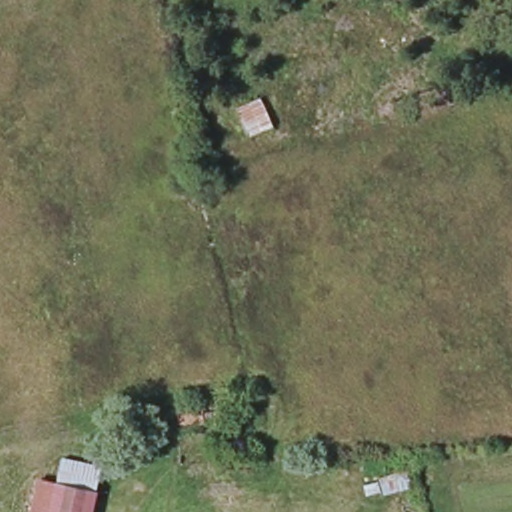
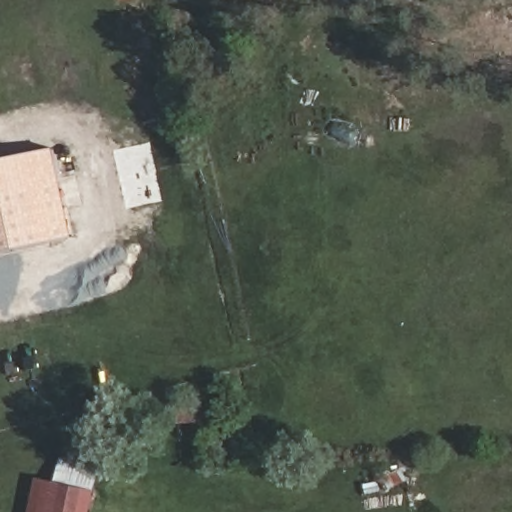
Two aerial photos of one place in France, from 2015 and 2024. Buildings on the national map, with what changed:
demolished [(256,104),(267,132),(244,141),(233,114),(256,104)]
new [(74,237),(0,254),(0,161),(52,149),(74,237)]
unchanged [(80,465),(98,470),(89,512),(28,512),(34,484),(74,490),(80,465)]
unchanged [(366,499),(364,487),(402,474),(408,494),(366,499)]

